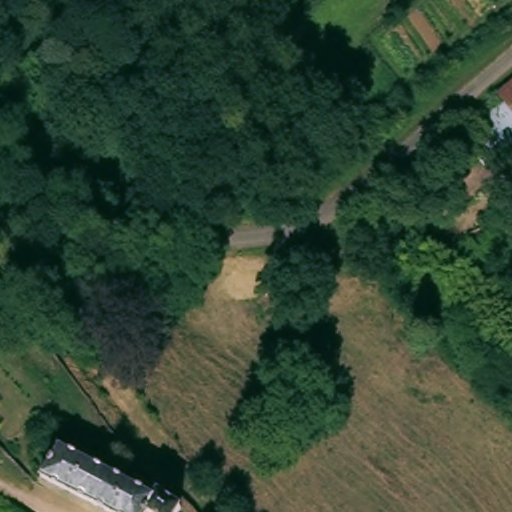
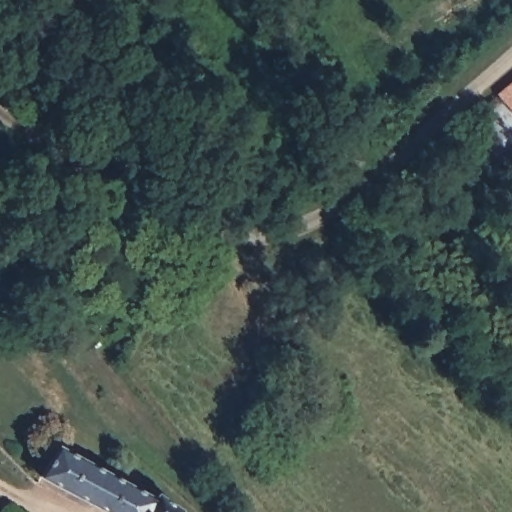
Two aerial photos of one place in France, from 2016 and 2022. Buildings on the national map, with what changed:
unchanged [(510,169),(475,126),(502,102),(502,93),(512,85),(512,167),(510,169)]
unchanged [(143,507),(139,512),(115,512),(44,477),(61,442),(156,496),(160,492),(183,505),(179,512),(150,512),(143,507)]

